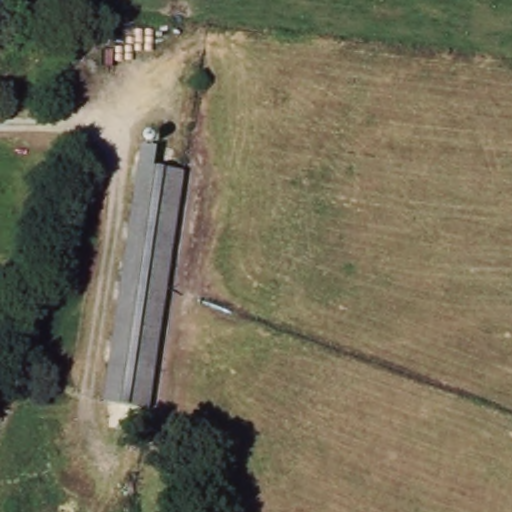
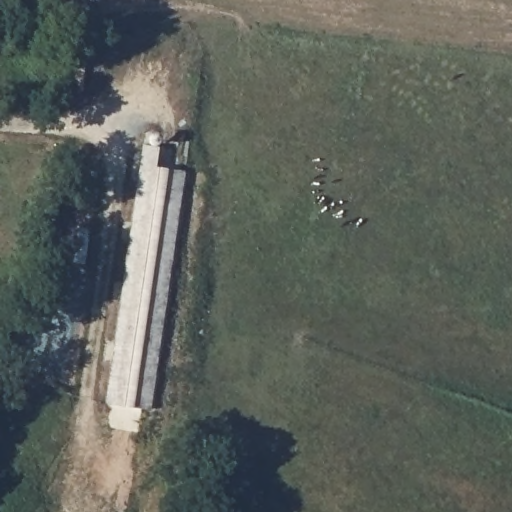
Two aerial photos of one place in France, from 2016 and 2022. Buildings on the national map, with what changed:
unchanged [(149,409),(105,402),(144,145),(159,147),(155,167),(184,171),(149,409)]

